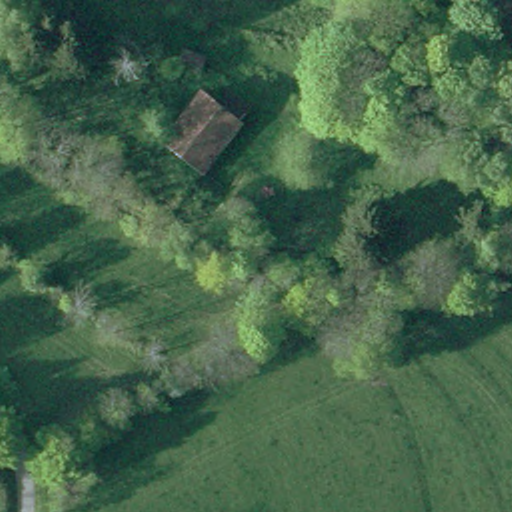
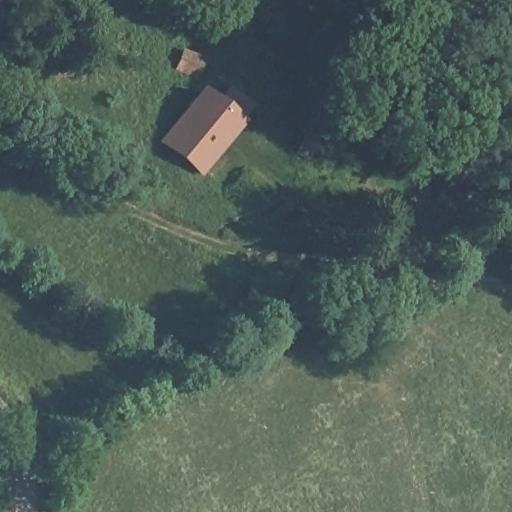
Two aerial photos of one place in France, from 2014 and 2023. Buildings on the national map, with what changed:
unchanged [(157,138),(197,89),(218,105),(222,99),(229,105),(224,111),(236,120),(195,170),(157,138)]

